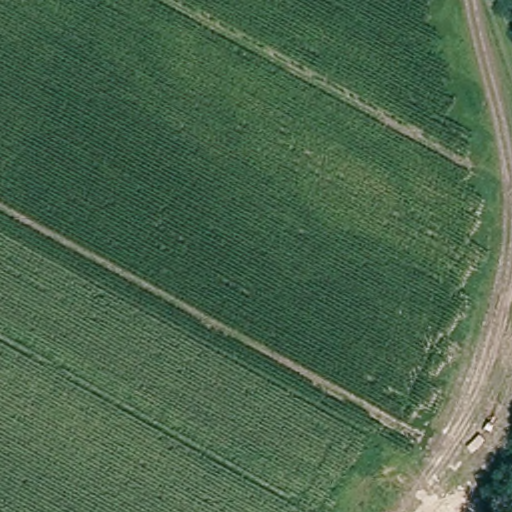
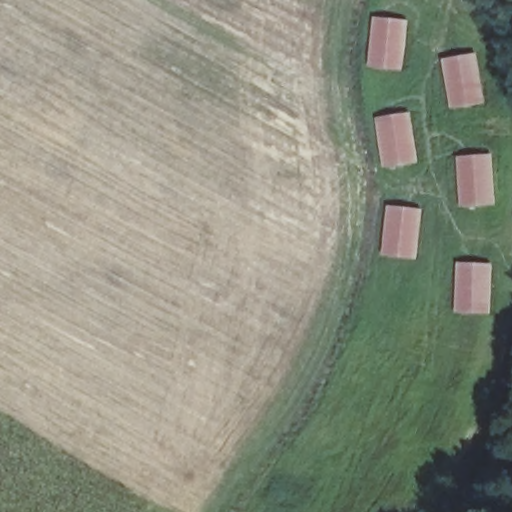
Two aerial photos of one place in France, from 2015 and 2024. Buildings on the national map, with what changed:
new [(491,10),(477,5),(479,0),(497,0),(489,24),(486,23),(491,10)]
new [(375,17),(409,21),(403,72),(370,68),(375,17)]
new [(478,53),(488,104),(452,110),(443,59),(478,53)]
new [(412,113),(421,164),(385,170),(377,118),(412,113)]
new [(493,154),(497,205),(461,207),(457,156),(493,154)]
new [(388,204),(423,208),(417,260),(383,256),(388,204)]
new [(458,262),(494,263),(492,315),(456,313),(458,262)]

